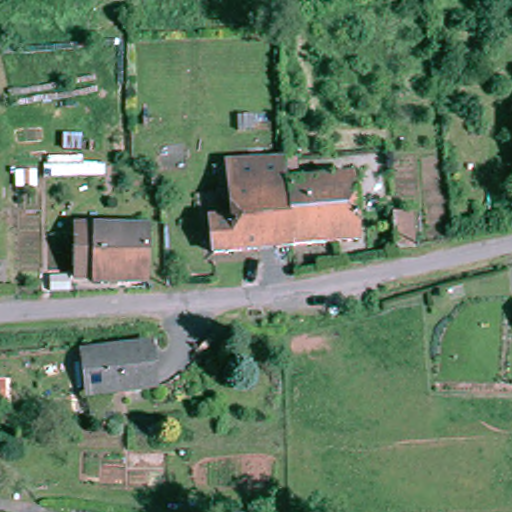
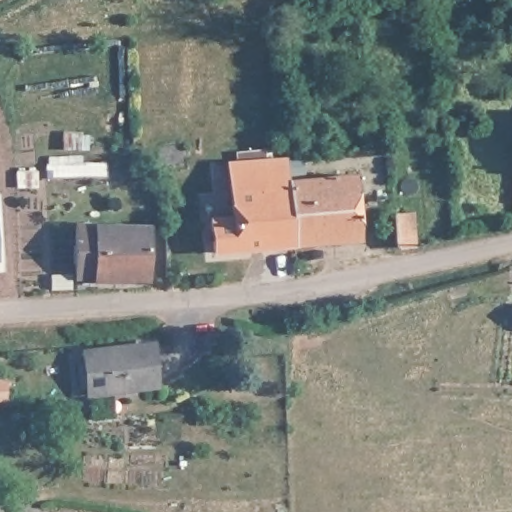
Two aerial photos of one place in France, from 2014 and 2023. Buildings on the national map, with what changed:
unchanged [(510,147),(512,147),(512,207),(510,207),(510,147)]
unchanged [(227,171),(283,167),(285,186),(290,248),(212,255),(208,224),(231,222),(227,171)]
unchanged [(285,186),(303,184),(302,171),(315,170),(317,183),(347,180),(353,242),(290,248),(285,186)]
unchanged [(407,250),(408,257),(388,258),(385,229),(406,227),(407,250)]
unchanged [(122,228),(152,228),(153,276),(95,277),(95,274),(77,273),(78,229),(122,228)]
unchanged [(157,387),(90,393),(87,352),(154,345),(157,387)]

